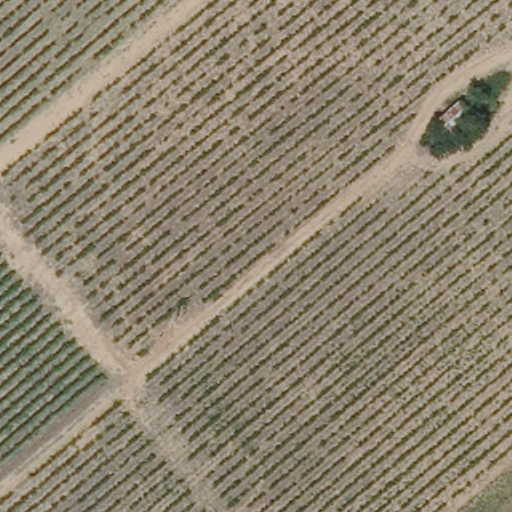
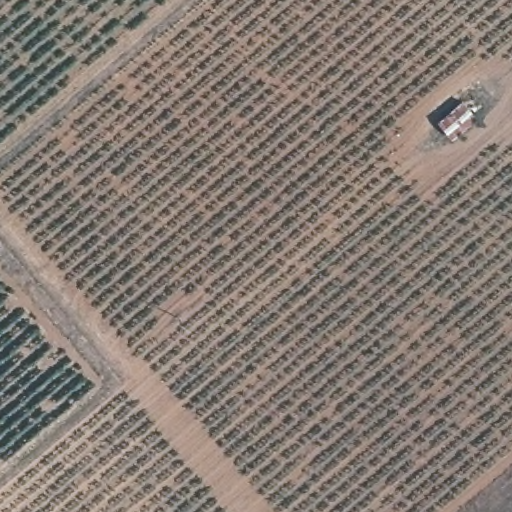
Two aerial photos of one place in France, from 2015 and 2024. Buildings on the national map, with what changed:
unchanged [(476,117),(453,138),(437,120),(461,100),(476,117)]

